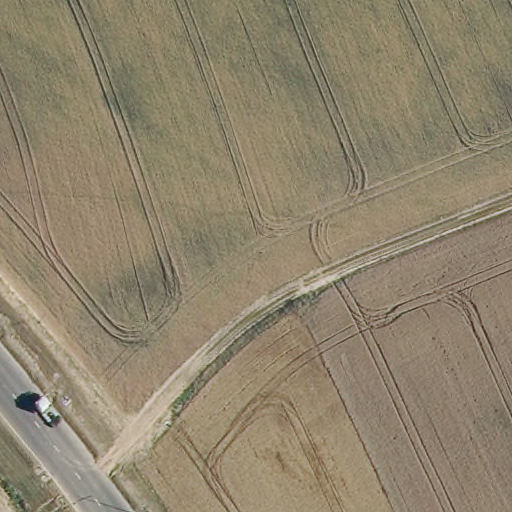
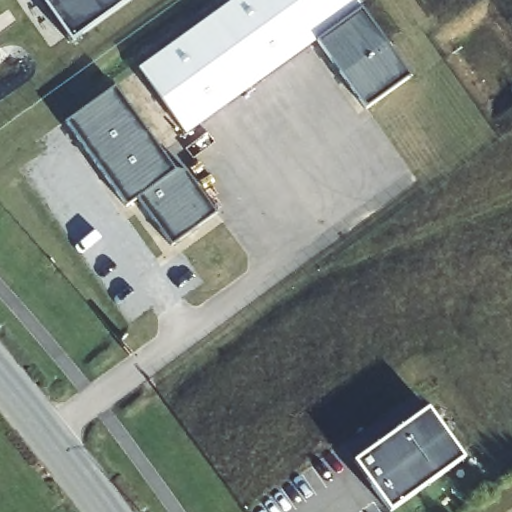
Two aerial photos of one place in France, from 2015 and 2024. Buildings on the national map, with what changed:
new [(40,0),(130,0),(70,42),(40,0)]
new [(356,0),(410,75),(367,107),(317,39),(185,134),(138,67),(232,0),(356,0)]
new [(65,124),(115,87),(175,170),(187,171),(216,211),(172,245),(138,199),(127,206),(65,124)]
new [(428,409),(463,457),(390,512),(352,462),(428,409)]

